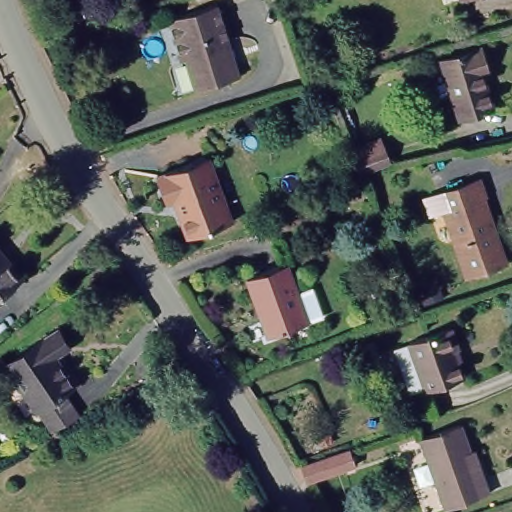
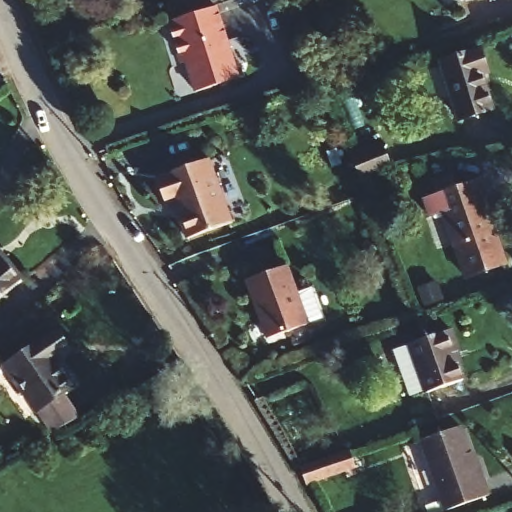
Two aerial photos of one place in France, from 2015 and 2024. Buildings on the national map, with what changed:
unchanged [(465,0),(467,0),(465,1),(465,0)]
unchanged [(214,1),(239,71),(197,85),(187,59),(183,60),(167,16),(214,1)]
unchanged [(478,46),(485,69),(478,71),(488,104),(458,114),(441,59),(478,46)]
unchanged [(382,134),(393,162),(361,172),(350,145),(382,134)]
unchanged [(219,155),(242,222),(189,237),(175,198),(169,200),(160,172),(219,155)]
unchanged [(478,182),(503,262),(467,275),(440,196),(478,182)]
unchanged [(0,291),(0,249),(20,275),(0,291)]
unchanged [(283,264),(307,328),(268,341),(242,278),(283,264)]
unchanged [(45,332),(61,324),(70,341),(54,349),(69,377),(62,381),(78,412),(43,429),(5,354),(45,332)]
unchanged [(456,326),(463,347),(457,349),(467,376),(435,386),(433,382),(420,387),(404,343),(456,326)]
unchanged [(462,431),(475,466),(479,465),(491,498),(452,512),(449,512),(427,443),(462,431)]
unchanged [(353,448),(359,466),(310,483),(303,465),(353,448)]

